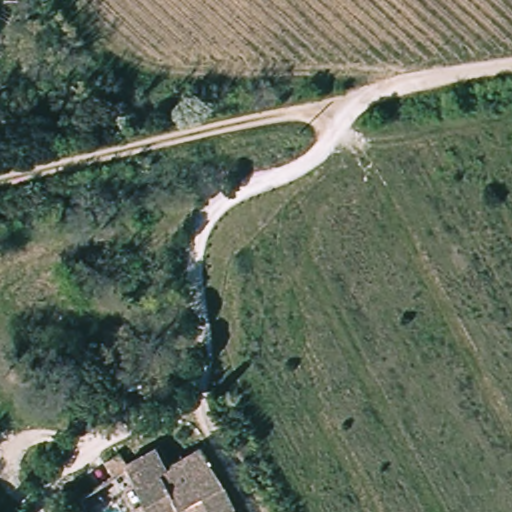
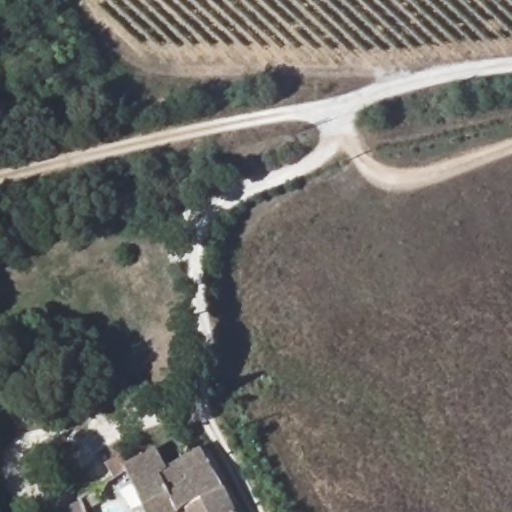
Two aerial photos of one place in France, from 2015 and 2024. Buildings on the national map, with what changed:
unchanged [(149,512),(145,512),(141,501),(130,461),(158,444),(171,463),(202,446),(233,512),(182,512),(176,496),(149,512)]

